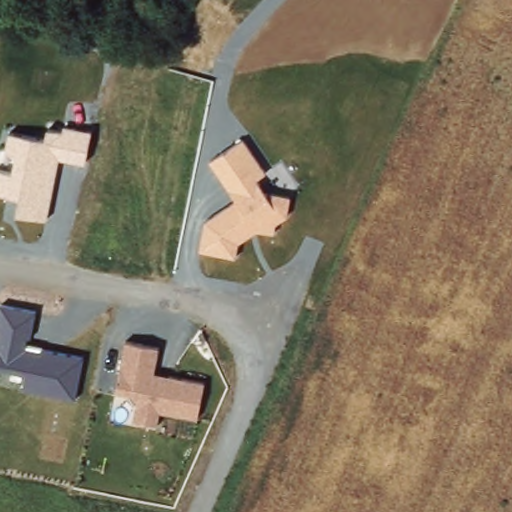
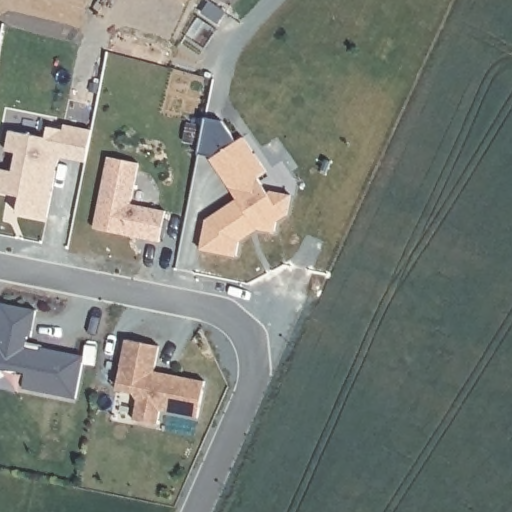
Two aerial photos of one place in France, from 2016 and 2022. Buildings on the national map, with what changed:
unchanged [(45,139),(47,127),(63,130),(65,124),(92,130),(84,161),(59,158),(45,221),(15,217),(19,197),(0,193),(0,170),(12,173),(16,153),(5,150),(9,131),(45,139)]
unchanged [(265,170),(256,176),(270,195),(290,195),(287,214),(277,221),(274,230),(255,225),(239,235),(235,256),(201,248),(206,217),(234,198),(208,159),(243,135),(265,170)]
new [(107,156),(139,164),(131,204),(163,211),(158,240),(93,228),(107,156)]
unchanged [(37,309),(29,346),(83,356),(75,400),(22,391),(26,374),(0,368),(0,311),(2,302),(37,309)]
unchanged [(158,346),(154,372),(204,383),(197,420),(158,412),(156,424),(132,420),(136,402),(131,395),(114,392),(121,339),(158,346)]

